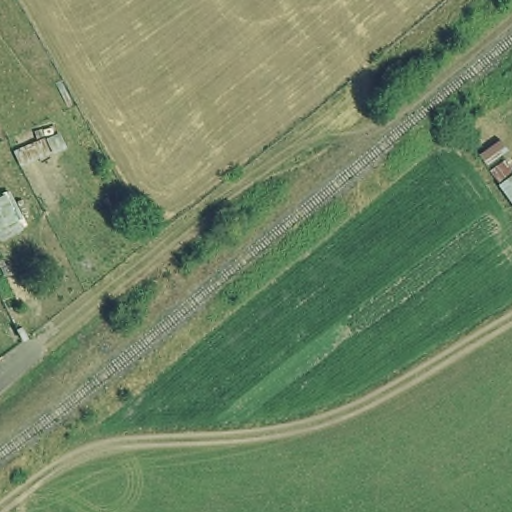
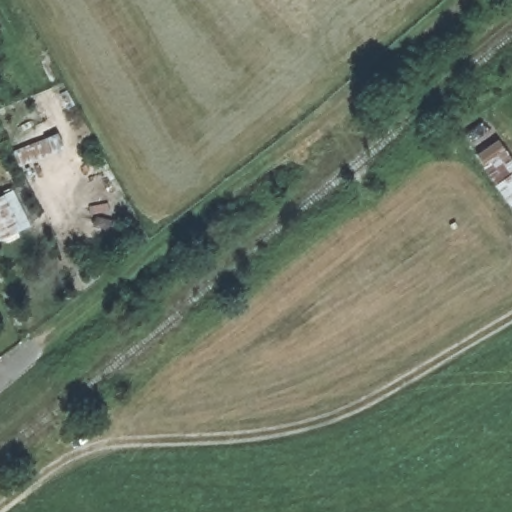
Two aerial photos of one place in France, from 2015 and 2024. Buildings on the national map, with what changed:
unchanged [(17,166),(9,147),(43,133),(51,151),(17,166)]
unchanged [(474,153),(496,135),(508,147),(501,154),(511,169),(512,169),(512,206),(474,153)]
unchanged [(0,192),(3,191),(18,225),(0,236),(0,192)]

